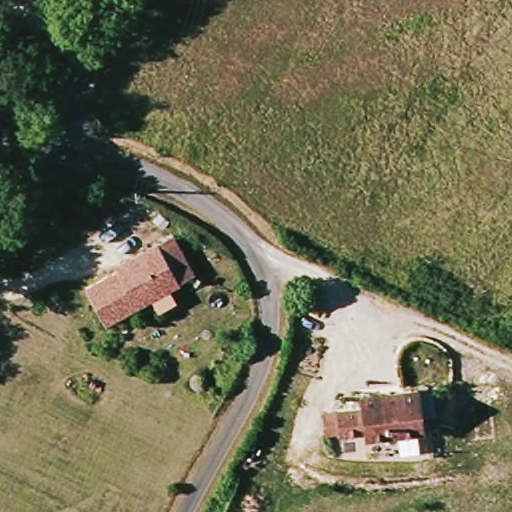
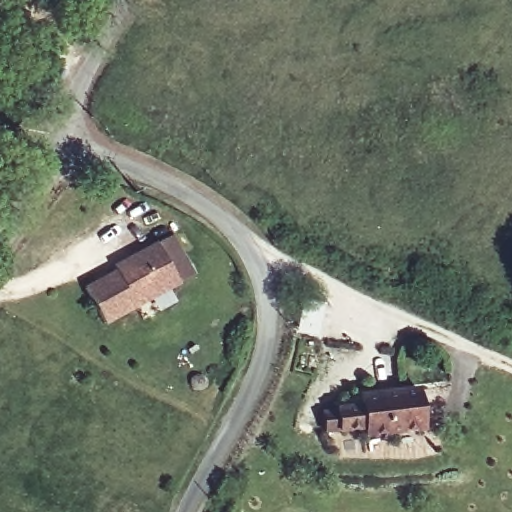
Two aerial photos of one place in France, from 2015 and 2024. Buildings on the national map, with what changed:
unchanged [(85,290),(116,273),(113,268),(156,244),(172,236),(193,274),(178,283),(104,324),(85,290)]
unchanged [(192,384),(188,381),(186,374),(188,368),(194,363),(199,362),(204,364),(208,368),(210,375),(208,381),(204,384),(197,387),(192,384)]
unchanged [(360,397),(421,389),(426,429),(367,438),(366,431),(340,434),(336,411),(362,407),(360,397)]

